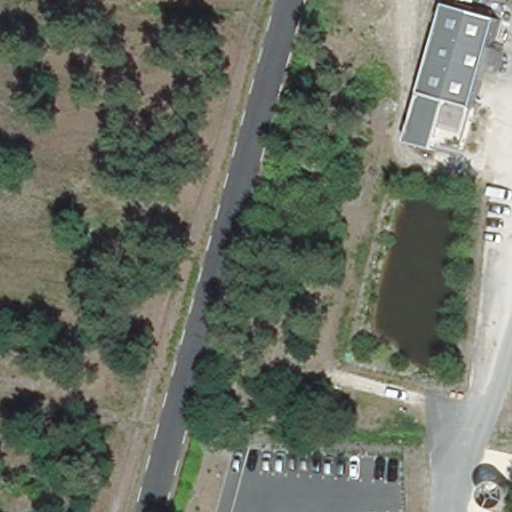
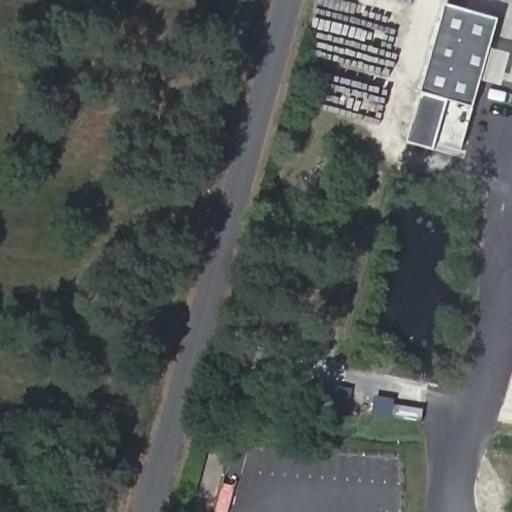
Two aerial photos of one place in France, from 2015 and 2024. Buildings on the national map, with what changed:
unchanged [(474,110),(421,96),(445,5),(498,19),(474,110)]

